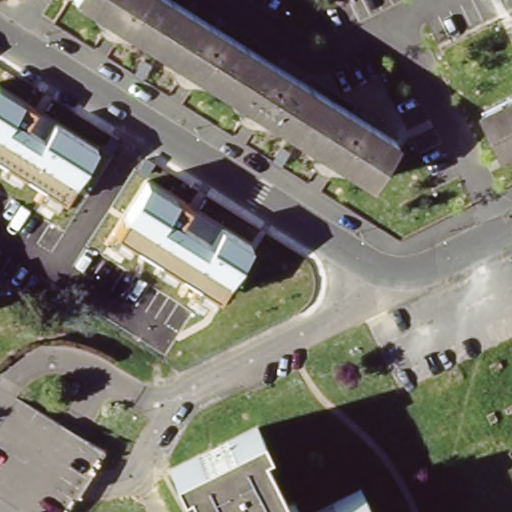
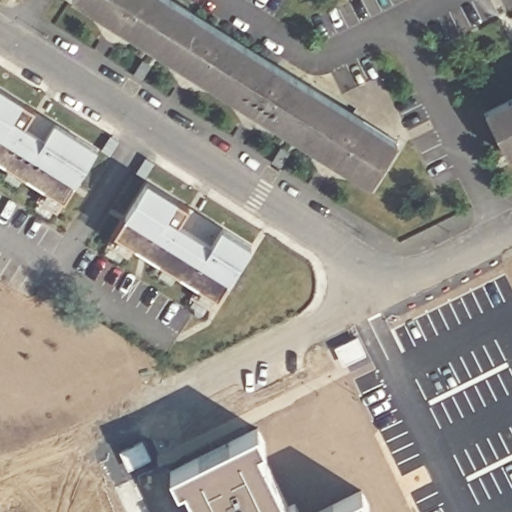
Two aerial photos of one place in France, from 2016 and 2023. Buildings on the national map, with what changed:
unchanged [(398,140),(373,180),(89,0),(177,0),(398,140)]
unchanged [(0,88),(37,109),(26,126),(45,137),(55,122),(100,149),(66,204),(0,161),(0,88)]
unchanged [(512,96),(512,147),(491,106),(512,96)]
unchanged [(147,180),(191,207),(181,223),(211,242),(223,226),(255,246),(220,299),(113,234),(147,180)]
unchanged [(64,512),(0,512),(0,387),(101,452),(64,512)]
unchanged [(184,484),(176,468),(265,425),(272,441),(266,444),(295,504),(300,501),(306,512),(204,512),(190,482),(184,484)]
unchanged [(377,505),(370,508),(372,512),(324,512),(370,490),(377,505)]

